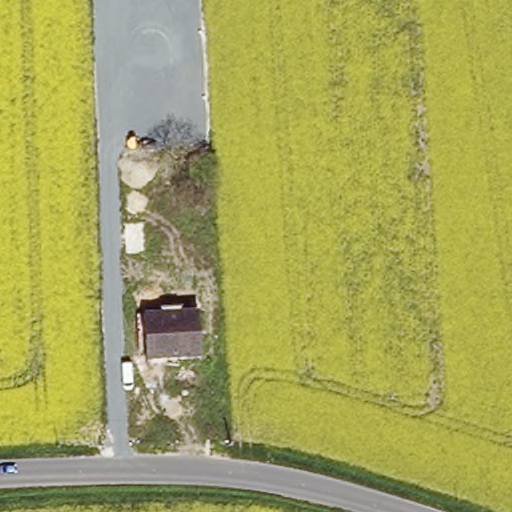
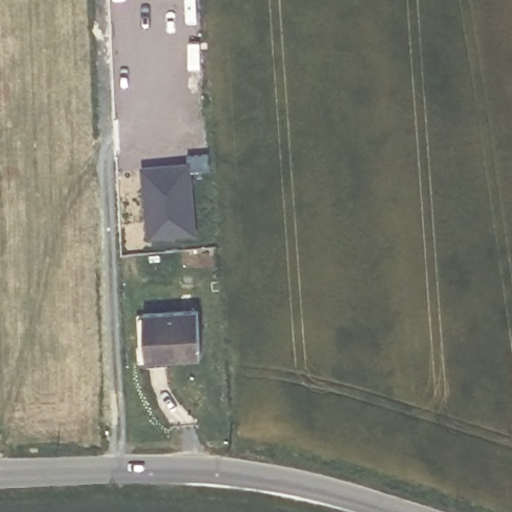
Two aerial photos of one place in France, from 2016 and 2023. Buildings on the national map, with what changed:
new [(190,166),(189,157),(211,156),(211,172),(191,173),(196,235),(156,240),(148,240),(144,168),(151,168),(190,166)]
demolished [(131,249),(128,219),(144,218),(146,248),(131,249)]
unchanged [(198,359),(147,362),(144,316),(194,313),(198,359)]

